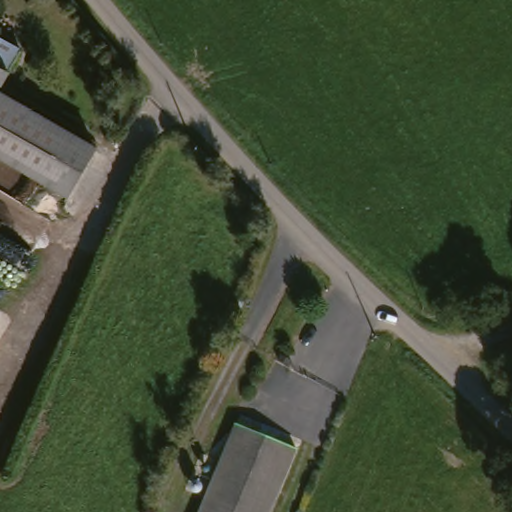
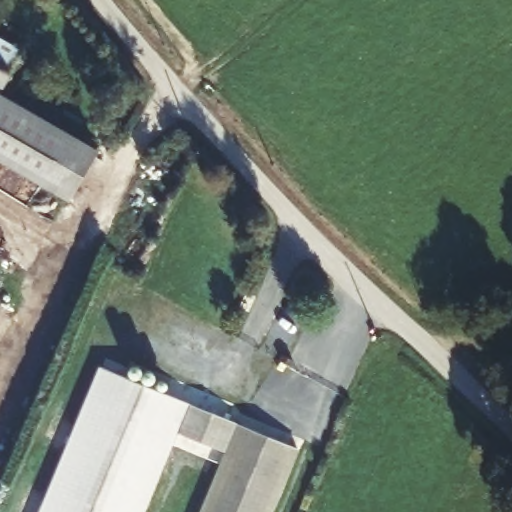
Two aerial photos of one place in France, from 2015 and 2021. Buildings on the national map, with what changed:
unchanged [(23,52),(2,91),(105,146),(77,200),(0,157),(0,40),(23,52)]
new [(242,426),(230,453),(177,431),(143,512),(37,512),(98,367),(242,426)]
unchanged [(272,512),(205,512),(245,418),(300,444),(272,512)]

